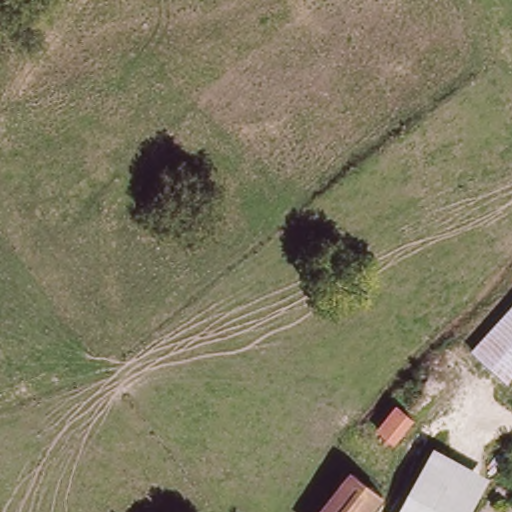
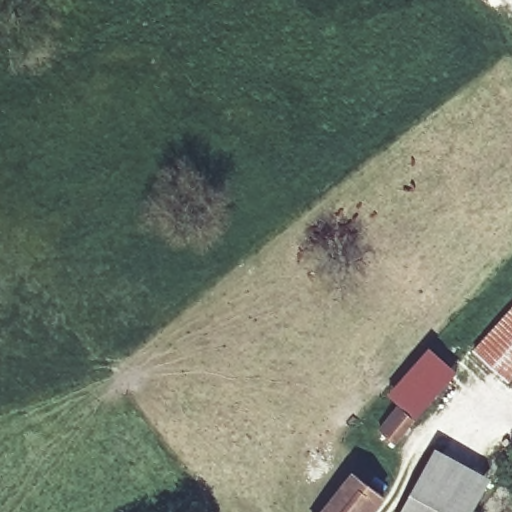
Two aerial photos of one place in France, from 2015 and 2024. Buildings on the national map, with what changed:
unchanged [(512,321),(512,387),(509,390),(476,360),(512,321)]
new [(395,443),(378,429),(399,404),(388,395),(430,347),(456,371),(414,420),(395,443)]
demolished [(388,435),(371,421),(391,398),(407,412),(388,435)]
unchanged [(472,512),(400,512),(435,448),(490,477),(472,512)]
unchanged [(328,512),(357,480),(384,504),(378,512),(328,512)]

